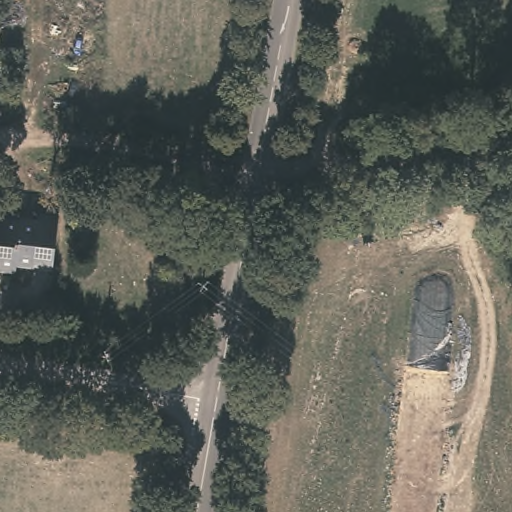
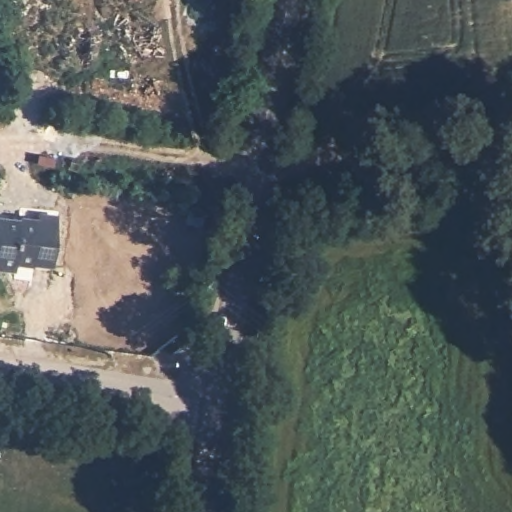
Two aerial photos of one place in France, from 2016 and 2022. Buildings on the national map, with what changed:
unchanged [(8,218),(9,214),(27,217),(29,211),(48,214),(44,233),(40,258),(21,255),(20,258),(7,255),(6,266),(0,266),(0,217),(8,218)]

